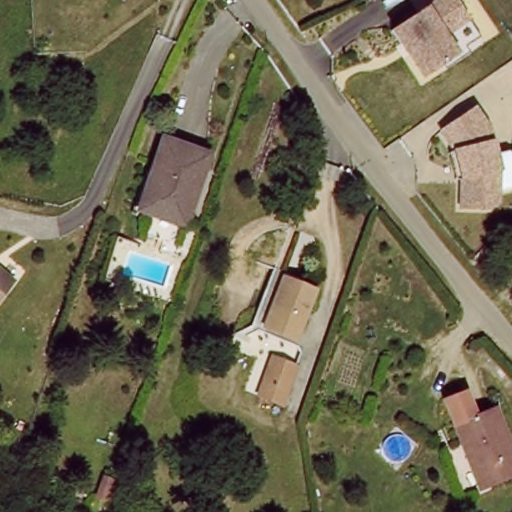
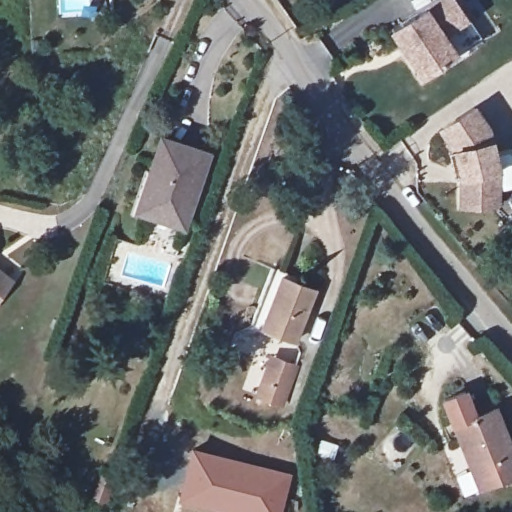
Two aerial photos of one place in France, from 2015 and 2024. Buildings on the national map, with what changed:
unchanged [(455,51),(459,58),(441,71),(437,65),(418,78),(386,33),(431,0),(447,0),(461,20),(474,38),(455,51)]
unchanged [(472,108),(486,128),(501,173),(502,203),(489,206),(461,207),(461,178),(449,147),(439,131),(472,108)]
unchanged [(203,154),(186,199),(194,205),(186,226),(136,206),(160,138),(203,154)]
unchanged [(0,311),(0,266),(21,282),(0,311)]
unchanged [(316,292),(296,345),(264,332),(284,278),(316,292)]
unchanged [(296,366),(282,408),(253,396),(266,356),(296,366)]
unchanged [(464,462),(450,424),(439,400),(466,389),(476,414),(500,406),(512,440),(512,476),(484,486),(473,490),(464,462)]
new [(282,512),(226,512),(176,499),(191,447),(293,474),(282,512)]

